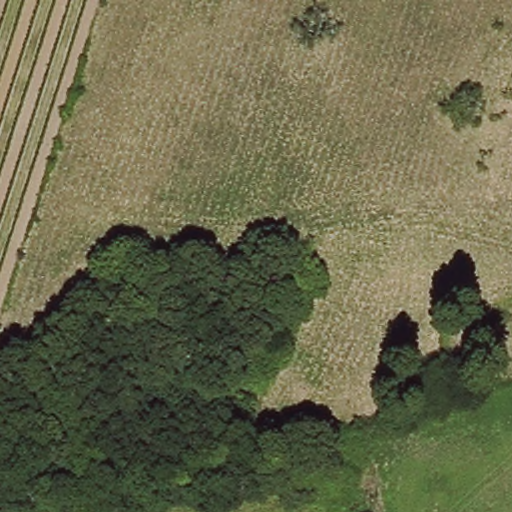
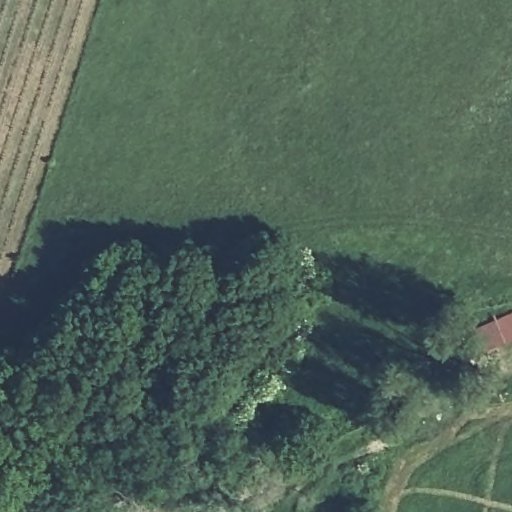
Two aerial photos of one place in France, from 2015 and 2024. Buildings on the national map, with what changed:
new [(478,327),(512,313),(512,339),(486,350),(478,327)]

